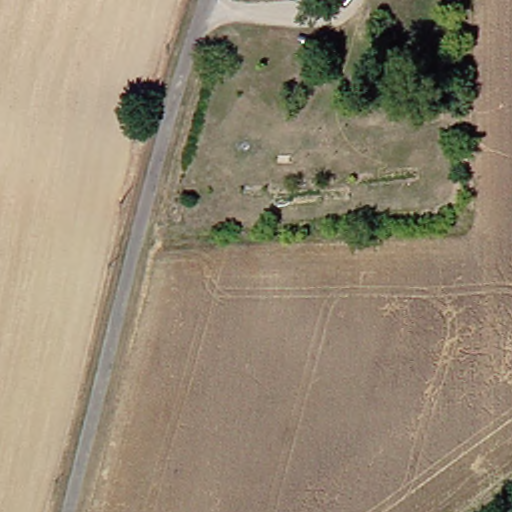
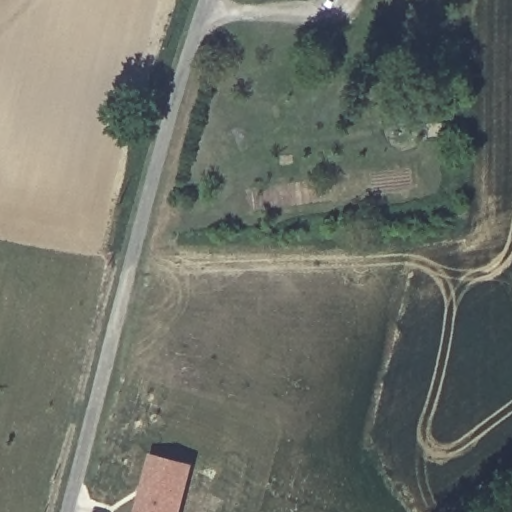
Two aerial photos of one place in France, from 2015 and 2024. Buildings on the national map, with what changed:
new [(193,468),(181,512),(139,512),(155,457),(193,468)]

